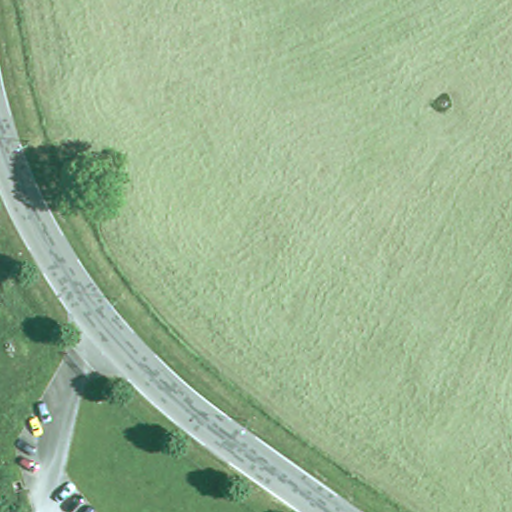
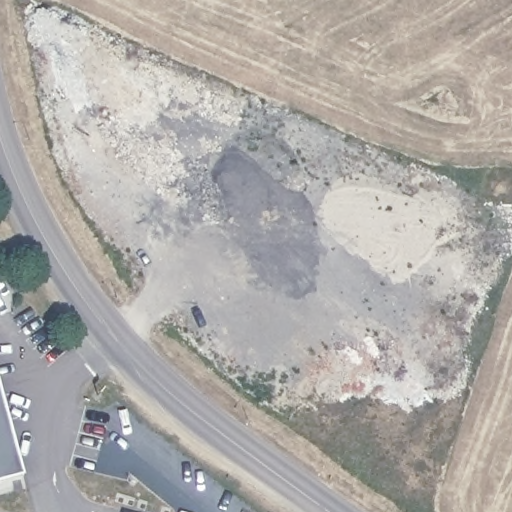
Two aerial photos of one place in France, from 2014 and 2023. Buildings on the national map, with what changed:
new [(0,482),(0,392),(23,476),(0,482)]

